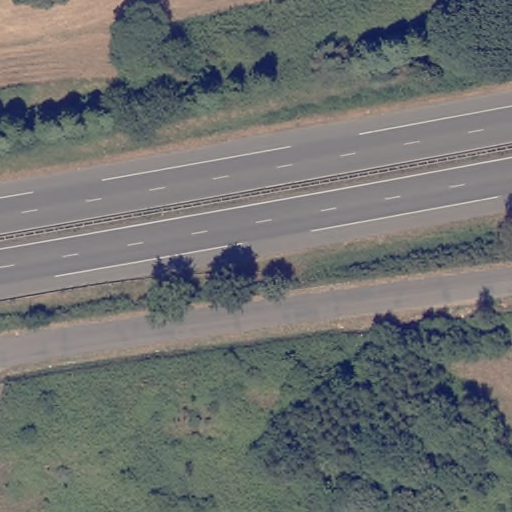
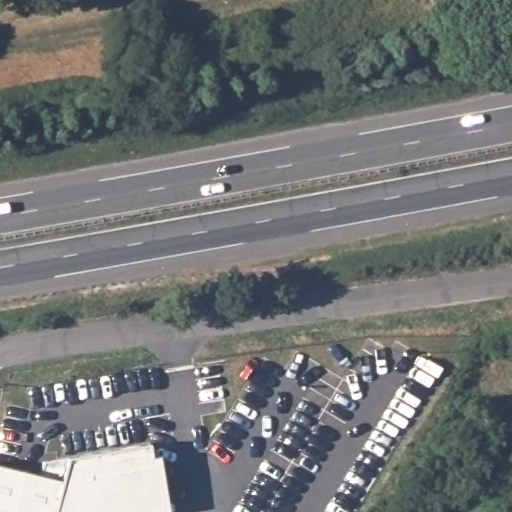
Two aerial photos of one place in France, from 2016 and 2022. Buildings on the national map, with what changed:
new [(150,453),(155,452),(164,506),(135,512),(0,512),(0,463),(39,472),(42,459),(147,440),(150,453)]

